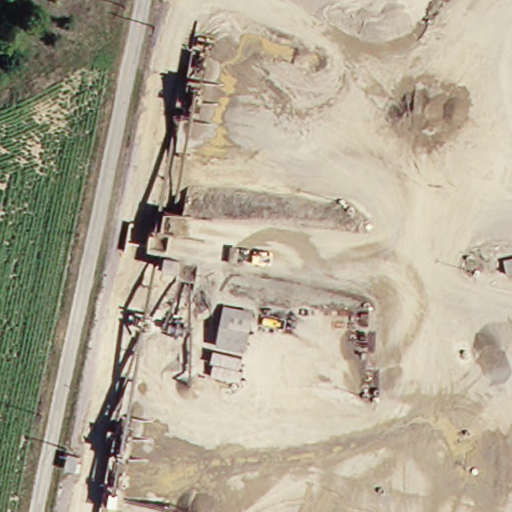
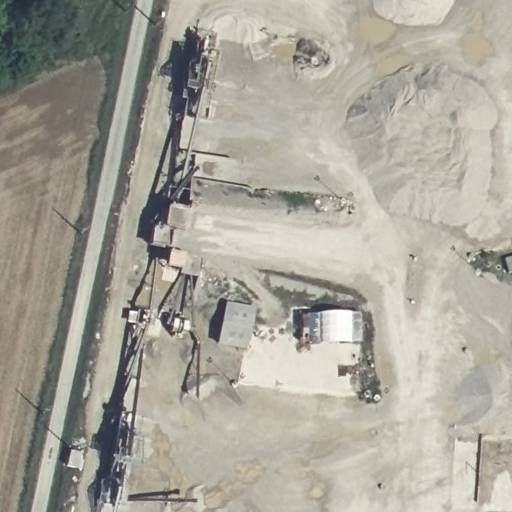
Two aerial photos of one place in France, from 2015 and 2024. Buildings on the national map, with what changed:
unchanged [(212,345),(220,302),(249,307),(241,348),(212,345)]
new [(308,316),(360,315),(361,345),(308,346),(308,316)]

